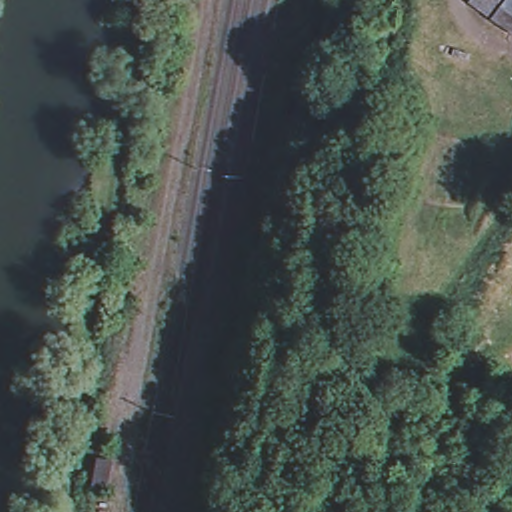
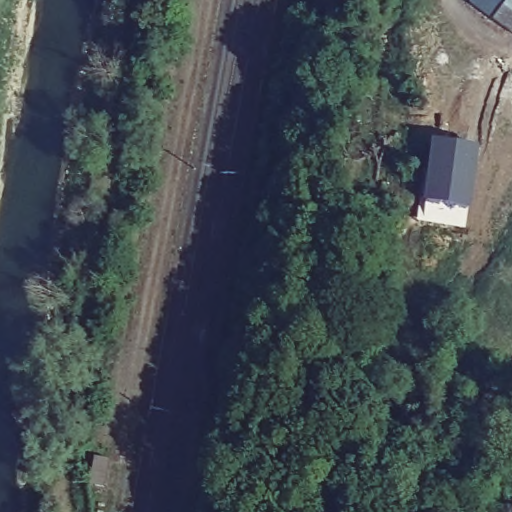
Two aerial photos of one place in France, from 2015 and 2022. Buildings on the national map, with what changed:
unchanged [(493,23),(486,18),(469,4),(472,0),(512,0),(512,37),(493,23)]
new [(478,143),(471,205),(425,199),(432,136),(478,143)]
unchanged [(85,489),(91,462),(99,464),(94,491),(85,489)]

